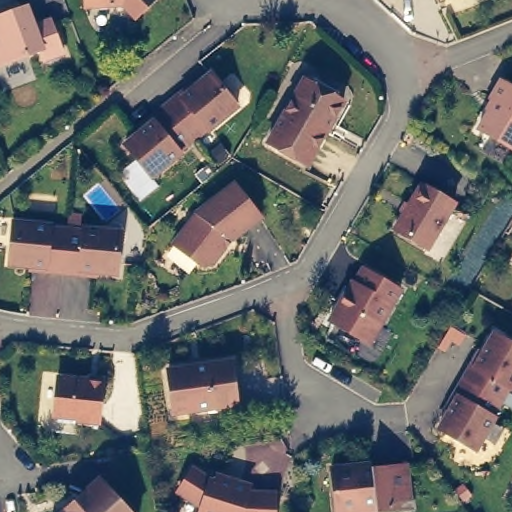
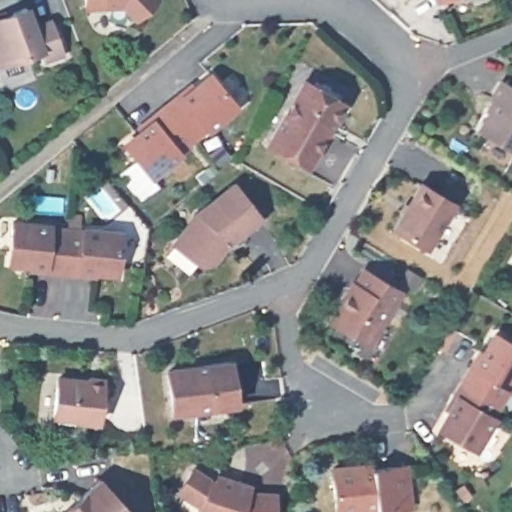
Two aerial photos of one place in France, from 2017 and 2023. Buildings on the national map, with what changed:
unchanged [(30,0),(33,0),(41,19),(57,12),(69,45),(52,52),(48,42),(3,59),(0,51),(0,39),(7,36),(0,17),(0,11),(30,0)]
unchanged [(121,0),(142,0),(132,10),(121,0)]
unchanged [(437,0),(440,0),(438,1),(437,0)]
unchanged [(155,124),(152,120),(181,96),(184,100),(212,77),(228,95),(239,109),(210,132),(209,132),(181,154),(182,155),(153,180),(127,147),(154,125),(155,124)]
unchanged [(308,162),(269,141),(305,77),(344,99),(308,162)]
unchanged [(479,132),(496,103),(492,100),(501,83),(512,89),(512,150),(479,132)]
unchanged [(239,237),(236,235),(230,242),(232,244),(219,262),(209,263),(184,244),(181,242),(205,209),(241,181),(267,215),(257,222),(239,237)]
unchanged [(423,187),(455,206),(429,251),(396,232),(423,187)]
unchanged [(144,235),(140,276),(103,272),(103,277),(68,274),(68,269),(32,266),(35,224),(144,235)]
unchanged [(373,341),(366,343),(332,323),(348,295),(350,296),(365,271),(401,292),(373,341)]
unchanged [(496,420),(477,452),(441,432),(459,400),(455,397),(472,367),(477,369),(496,336),(512,345),(512,390),(512,391),(511,391),(494,419),(496,420)]
unchanged [(233,364),(239,407),(176,416),(170,372),(233,364)]
unchanged [(93,377),(93,381),(105,382),(101,421),(81,418),(81,416),(57,413),(61,375),(93,377)]
unchanged [(339,512),(334,466),(364,462),(365,467),(408,462),(412,504),(339,512)]
unchanged [(276,512),(204,512),(205,510),(182,494),(196,472),(213,483),(219,485),(221,478),(243,486),(251,488),(249,495),(277,497),(276,512)]
unchanged [(102,476),(135,512),(64,512),(102,476)]

